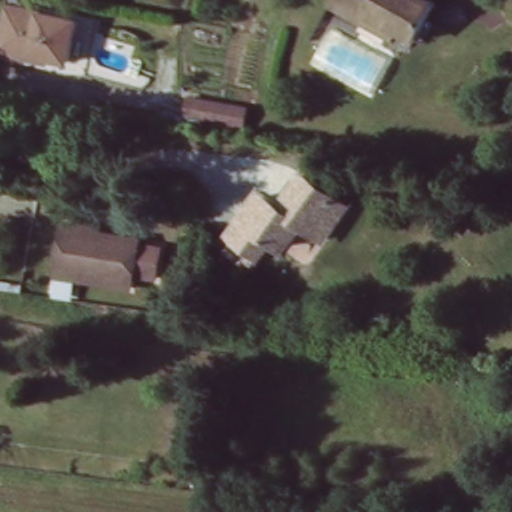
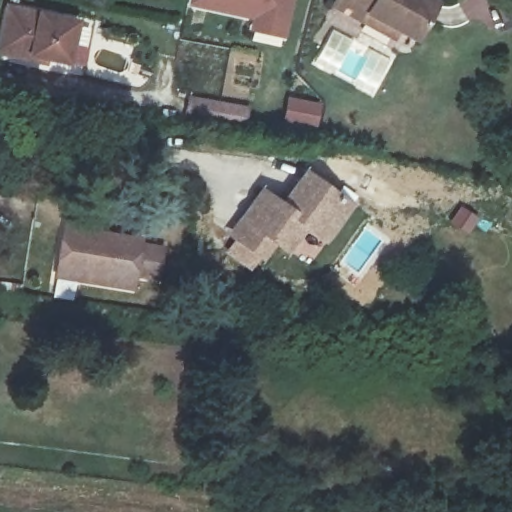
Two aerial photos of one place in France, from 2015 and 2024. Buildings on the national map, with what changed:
new [(254,33),(256,20),(194,7),(195,0),(292,0),(284,39),(254,33)]
unchanged [(417,40),(370,14),(364,22),(344,10),(333,4),(335,0),(430,0),(437,4),(417,40)]
unchanged [(0,58),(0,55),(3,42),(6,30),(10,12),(82,28),(76,57),(73,68),(51,63),(50,68),(36,65),(0,58)]
unchanged [(190,107),(218,112),(214,130),(187,125),(190,107)]
new [(220,113),(247,118),(244,136),(217,131),(220,113)]
unchanged [(225,243),(234,231),(265,189),(282,203),(306,172),(349,204),(324,237),(305,260),(282,241),(273,234),(261,251),(252,263),(225,243)]
unchanged [(61,272),(68,227),(95,231),(94,235),(144,244),(143,248),(165,251),(160,283),(138,279),(136,292),(85,284),(59,279),(61,272)]

